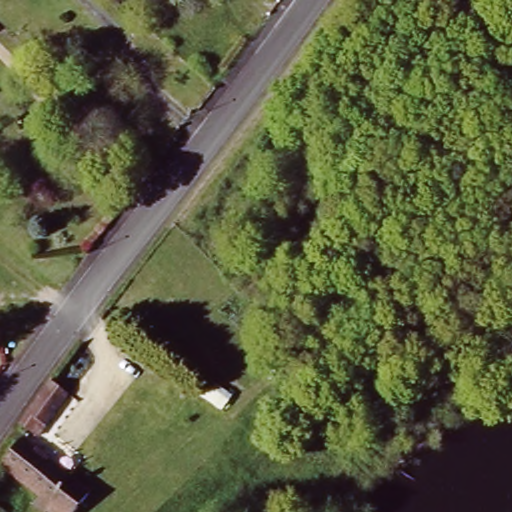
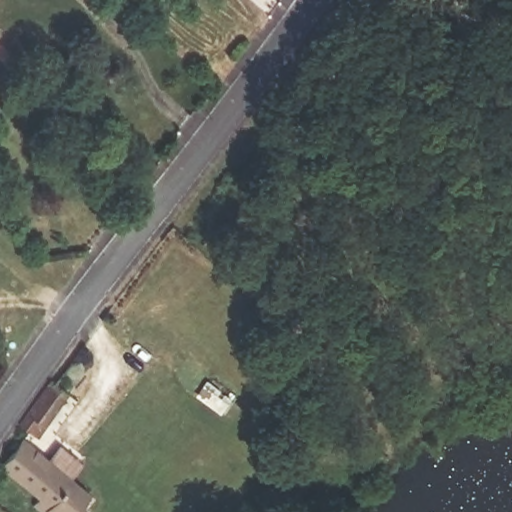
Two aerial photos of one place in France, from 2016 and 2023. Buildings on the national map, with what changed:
unchanged [(117,61),(130,72),(116,88),(103,77),(117,61)]
unchanged [(57,380),(72,390),(50,422),(45,420),(38,430),(27,422),(57,380)]
unchanged [(28,437),(97,493),(82,512),(56,512),(60,508),(57,505),(52,512),(50,512),(40,505),(47,497),(6,464),(28,437)]

